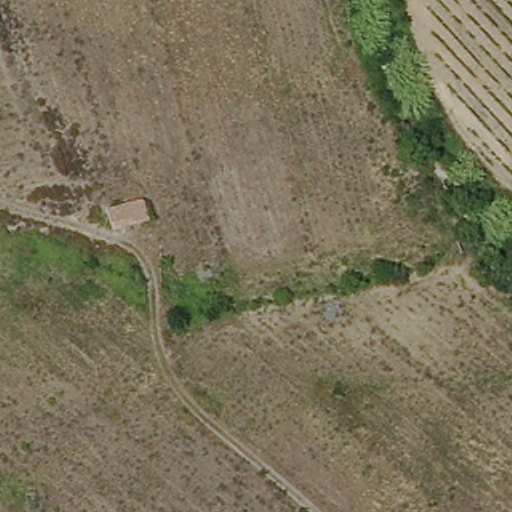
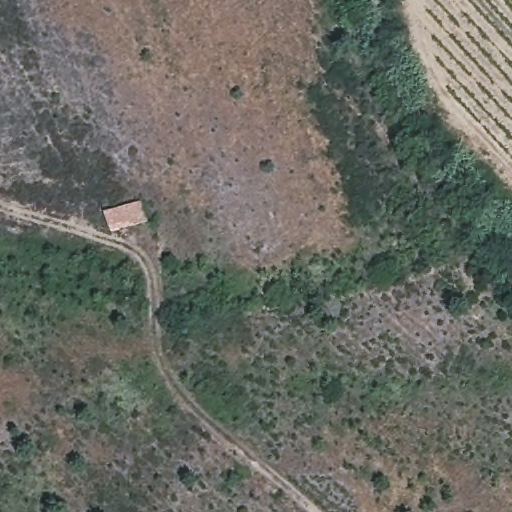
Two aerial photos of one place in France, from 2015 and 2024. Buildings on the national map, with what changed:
unchanged [(105,219),(137,202),(146,216),(115,235),(105,219)]

